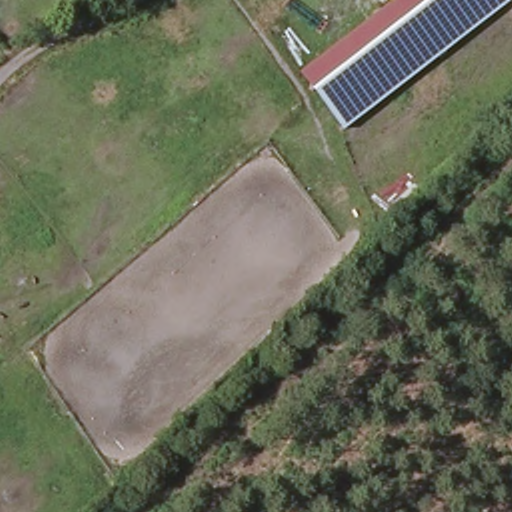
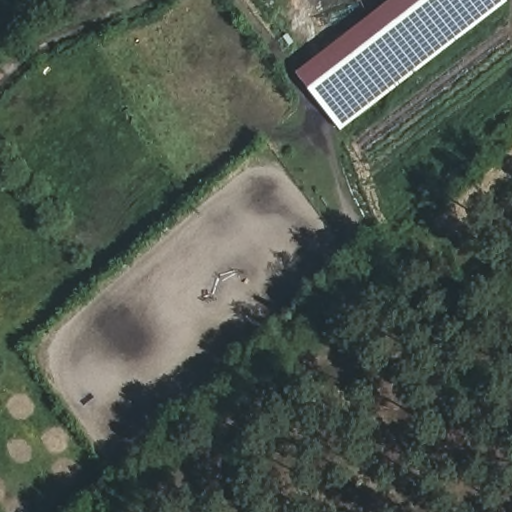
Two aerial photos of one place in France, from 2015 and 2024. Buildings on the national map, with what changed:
unchanged [(296,73),(391,0),(508,0),(341,130),(296,73)]

